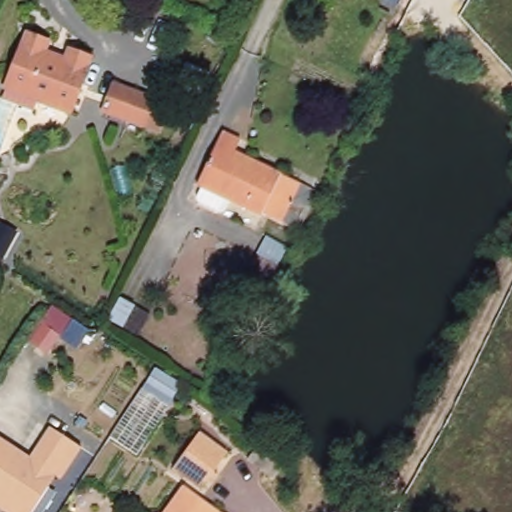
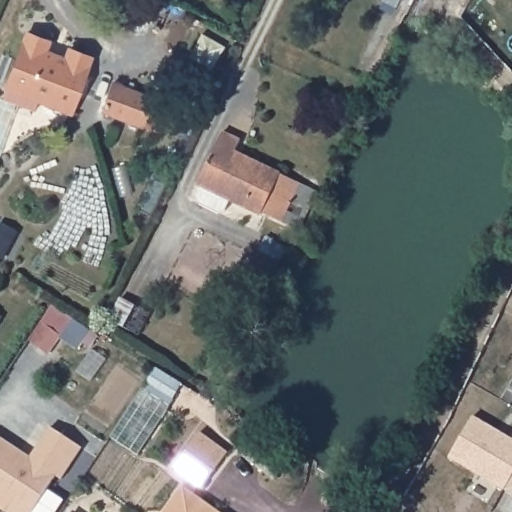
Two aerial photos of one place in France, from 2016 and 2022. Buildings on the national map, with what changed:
unchanged [(48,39),(44,49),(66,57),(70,47),(91,55),(70,110),(38,97),(34,109),(3,97),(8,84),(8,80),(27,31),(48,39)]
unchanged [(158,112),(164,115),(156,135),(134,127),(133,130),(93,115),(104,85),(144,101),(143,102),(159,109),(158,112)]
unchanged [(222,135),(240,144),(233,159),(239,161),(241,157),(311,192),(292,231),(277,223),(261,215),(259,219),(197,189),(222,135)]
unchanged [(292,231),(311,192),(318,195),(312,209),(283,264),(262,253),(277,223),(292,231)]
unchanged [(133,308),(121,330),(109,323),(120,301),(133,308)]
unchanged [(182,388),(173,401),(148,385),(156,372),(182,388)]
new [(473,417),(499,432),(497,435),(512,444),(512,443),(512,478),(505,490),(505,491),(449,459),(473,417)]
unchanged [(49,431),(83,453),(63,481),(56,481),(36,512),(0,512),(0,439),(30,458),(49,431)]
unchanged [(226,454),(200,491),(171,471),(197,434),(226,454)]
new [(505,490),(512,478),(512,494),(505,490)]
unchanged [(182,488),(201,501),(216,512),(165,512),(182,488)]

